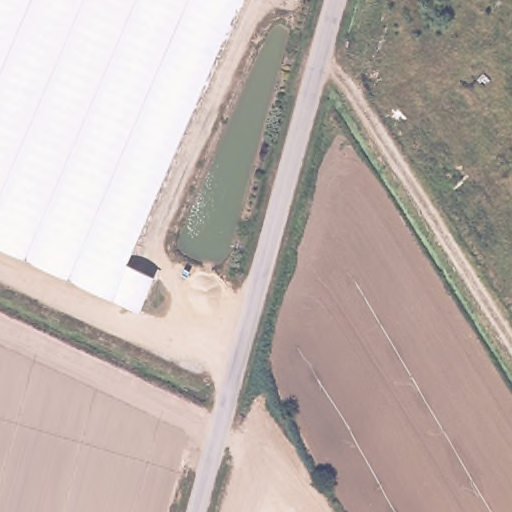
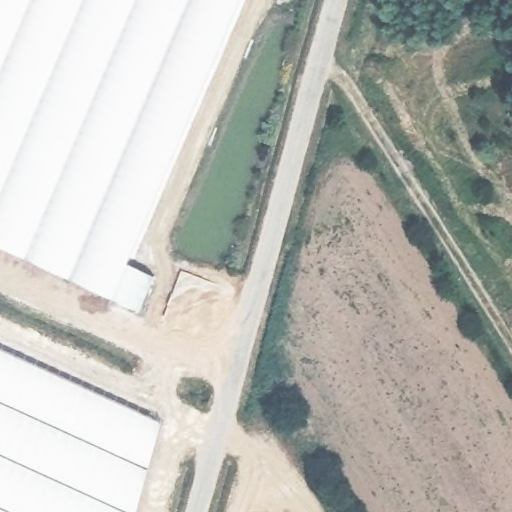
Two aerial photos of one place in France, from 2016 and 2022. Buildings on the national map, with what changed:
unchanged [(155,276),(140,310),(0,246),(0,0),(240,0),(129,260),(155,276)]
new [(160,422),(135,512),(0,512),(0,349),(160,422)]

